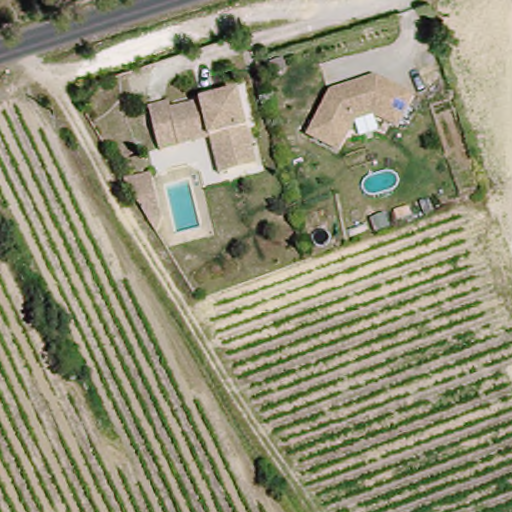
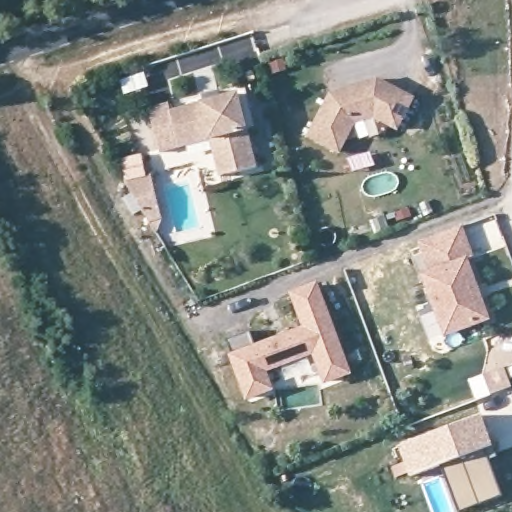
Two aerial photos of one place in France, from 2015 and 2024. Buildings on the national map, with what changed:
unchanged [(332,90),(378,76),(415,95),(401,128),(376,117),(358,124),(344,152),(310,136),(332,90)]
unchanged [(222,177),(209,139),(163,151),(150,106),(169,102),(170,110),(241,91),(261,164),(222,177)]
unchanged [(162,236),(124,179),(152,172),(162,236)]
new [(421,274),(431,271),(420,242),(463,225),(475,257),(470,259),(493,319),(445,338),(421,274)]
new [(325,384),(314,353),(268,370),(275,389),(246,399),(230,356),(234,354),(228,340),(250,332),(254,344),(303,326),(290,292),(319,282),(353,373),(325,384)]
new [(512,386),(492,394),(485,375),(505,367),(512,386)]
new [(488,438),(497,460),(489,463),(503,500),(480,509),(462,462),(442,469),(409,480),(397,449),(481,419),(488,438)]
new [(480,509),(473,512),(459,512),(442,469),(462,462),(480,509)]

